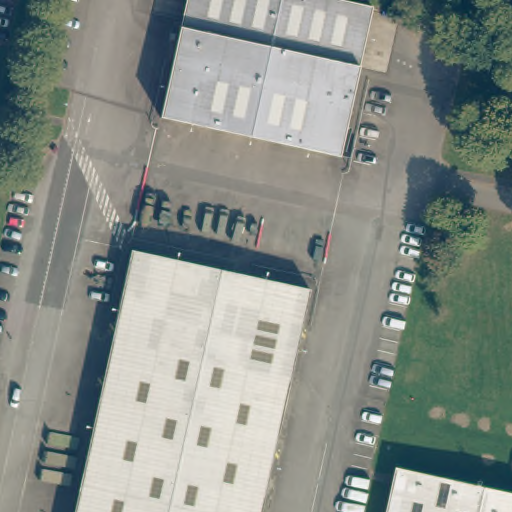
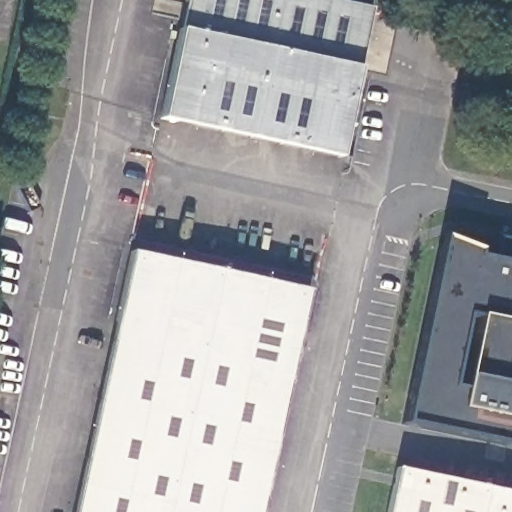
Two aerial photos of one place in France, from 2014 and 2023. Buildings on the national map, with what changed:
unchanged [(338,154),(159,115),(184,0),(340,0),(370,6),(338,154)]
demolished [(6,226),(5,230),(17,232),(13,251),(1,248),(0,252),(0,225),(6,226)]
new [(468,250),(487,254),(490,237),(491,231),(512,235),(512,440),(397,416),(436,230),(470,244),(468,250)]
unchanged [(255,512),(67,512),(125,249),(303,288),(255,512)]
unchanged [(395,466),(512,491),(512,512),(385,512),(395,466)]

